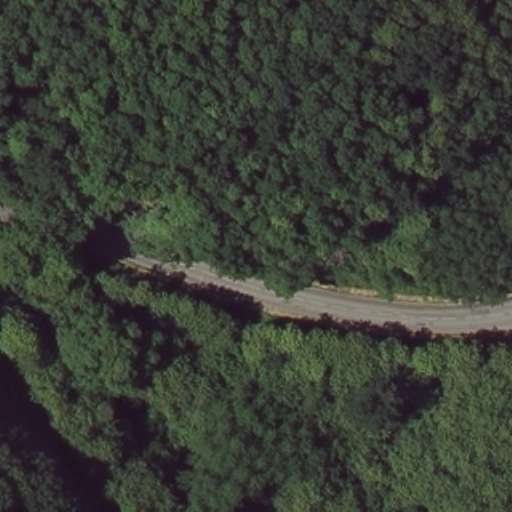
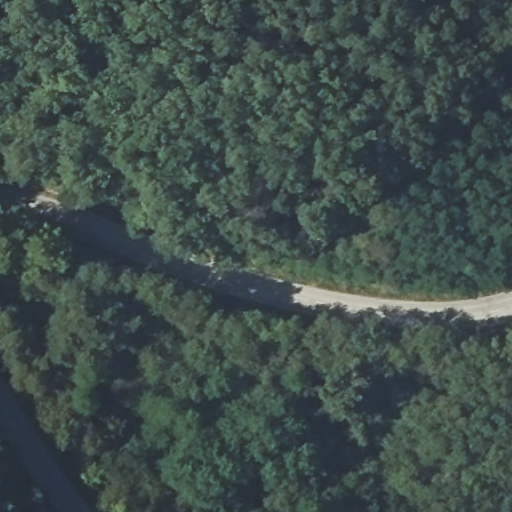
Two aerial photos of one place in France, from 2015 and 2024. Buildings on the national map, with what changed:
[]

